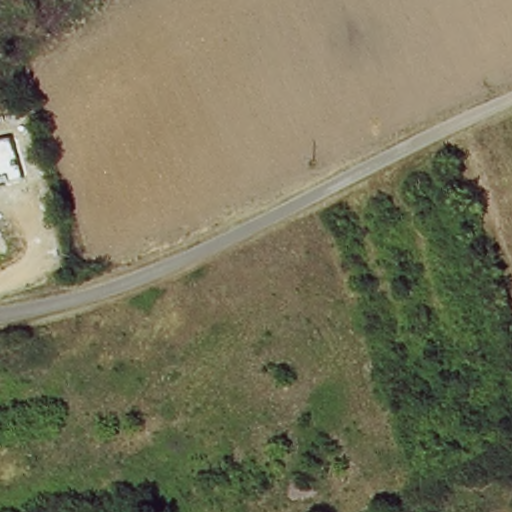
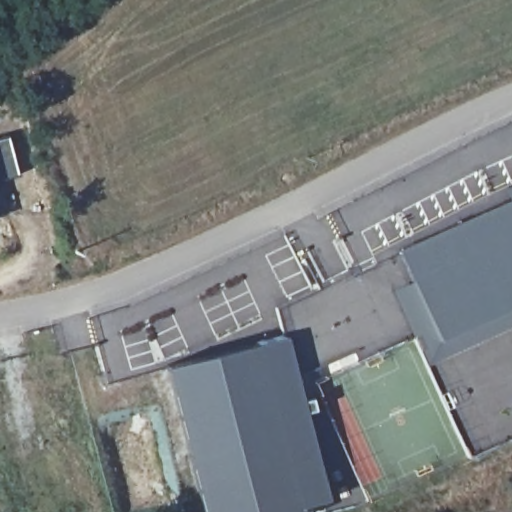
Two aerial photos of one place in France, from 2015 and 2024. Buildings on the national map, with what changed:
new [(9,138),(20,176),(0,180),(0,141),(9,138)]
new [(394,247),(420,233),(487,195),(512,185),(512,325),(425,366),(390,290),(410,280),(394,247)]
new [(512,439),(468,459),(425,366),(512,325),(512,439)]
new [(343,492),(342,490),(359,483),(365,499),(324,512),(200,512),(164,364),(239,345),(285,332),(293,353),(297,372),(303,397),(312,395),(316,409),(307,412),(329,499),(336,495),(343,492)]

